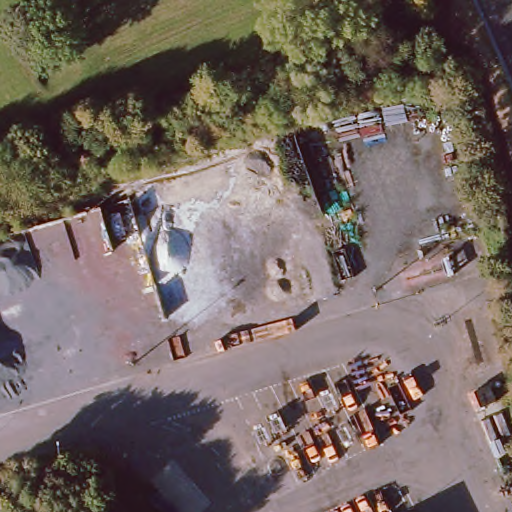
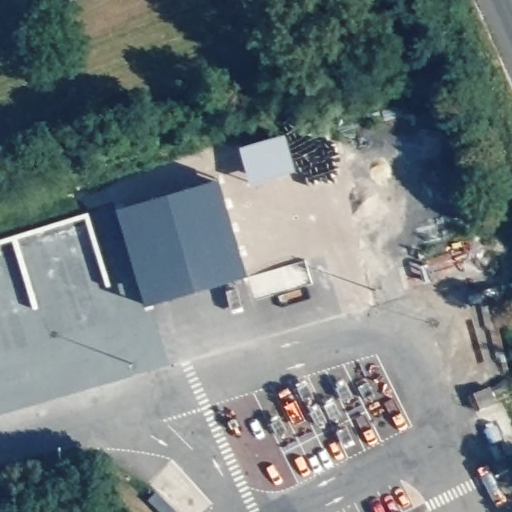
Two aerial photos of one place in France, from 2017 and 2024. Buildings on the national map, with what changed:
new [(249,273),(147,303),(120,210),(222,180),(249,273)]

